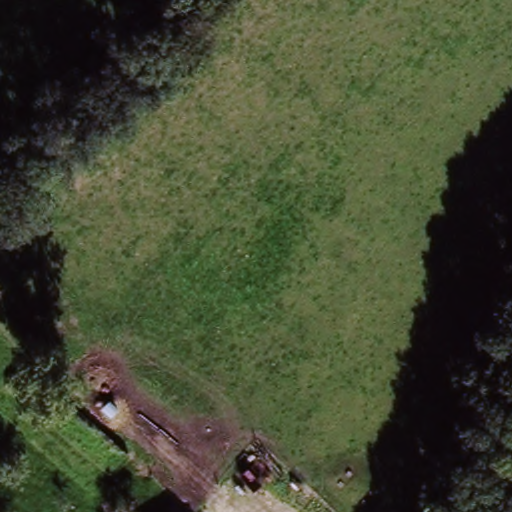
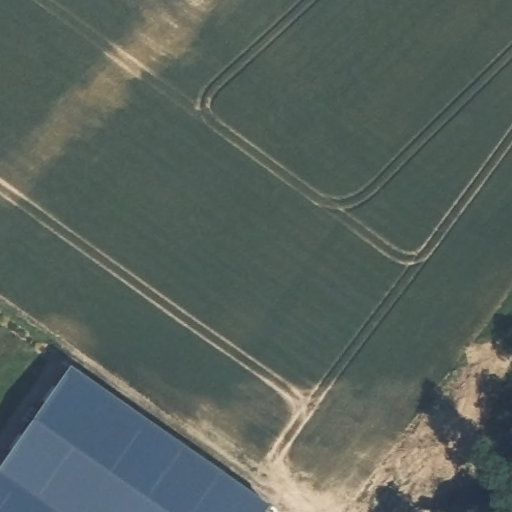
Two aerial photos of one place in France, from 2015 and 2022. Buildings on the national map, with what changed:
new [(266,512),(0,512),(0,468),(71,367),(270,506),(266,512)]

